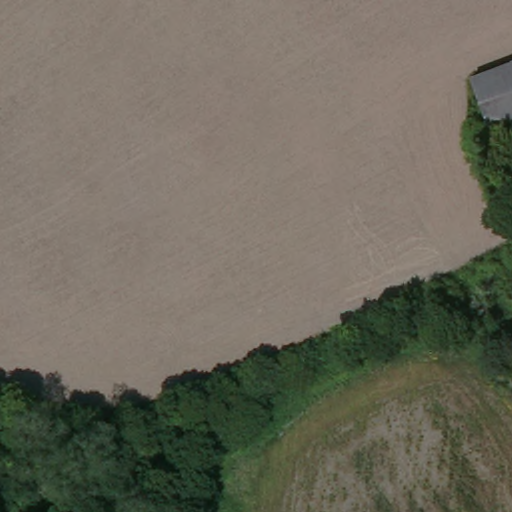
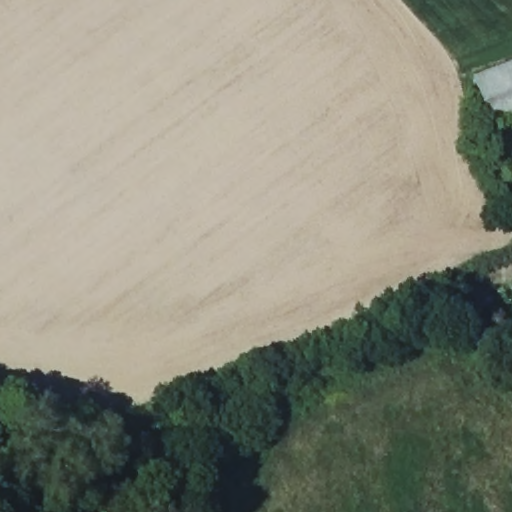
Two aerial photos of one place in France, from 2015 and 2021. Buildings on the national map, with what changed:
unchanged [(512,117),(487,125),(467,72),(512,56),(512,117)]

